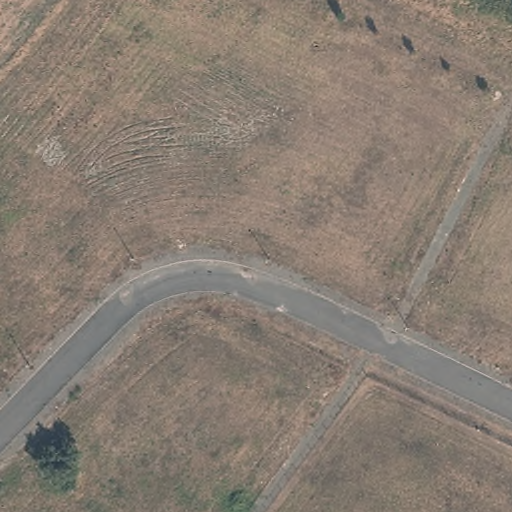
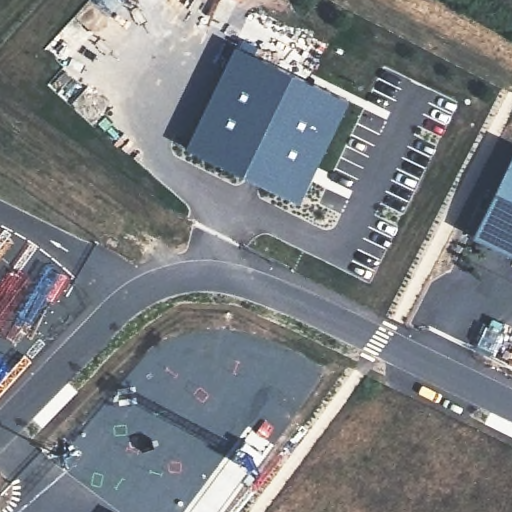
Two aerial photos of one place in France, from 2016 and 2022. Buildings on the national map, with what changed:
new [(234,45),(345,99),(296,199),(185,146),(234,45)]
new [(512,254),(471,234),(512,152),(512,254)]

